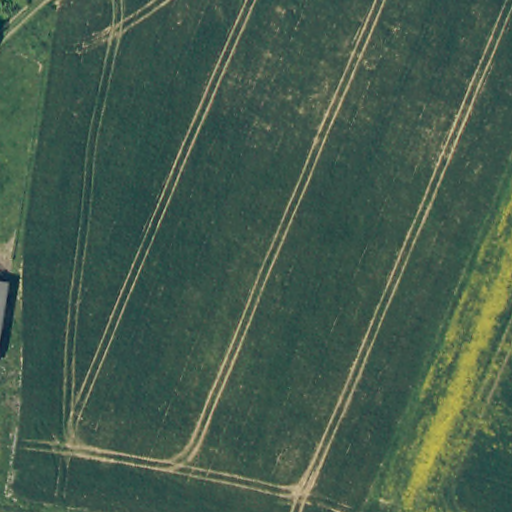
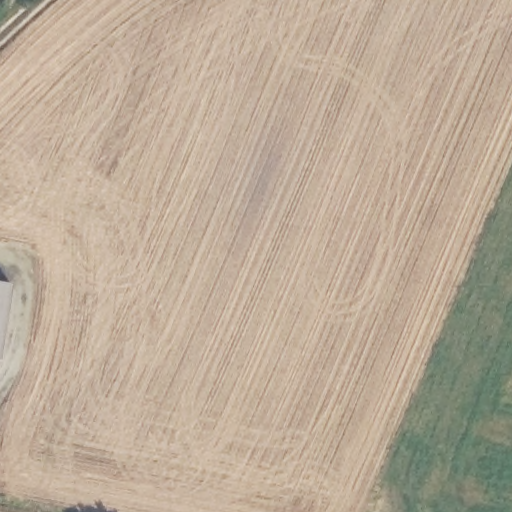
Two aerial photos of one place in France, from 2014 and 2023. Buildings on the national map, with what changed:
unchanged [(0,332),(0,285),(7,285),(0,332)]

